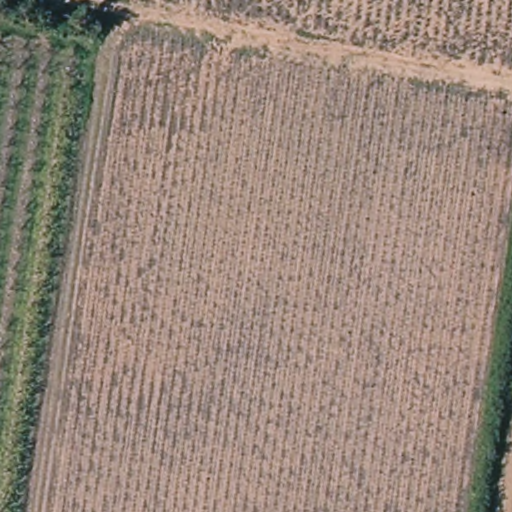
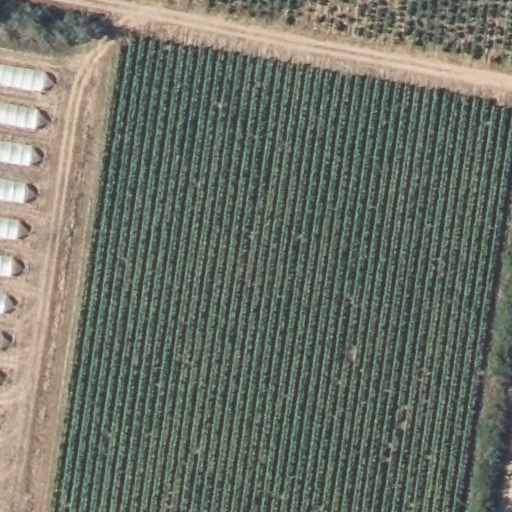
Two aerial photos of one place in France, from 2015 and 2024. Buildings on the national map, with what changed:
new [(0,64),(50,73),(0,358),(0,64)]

